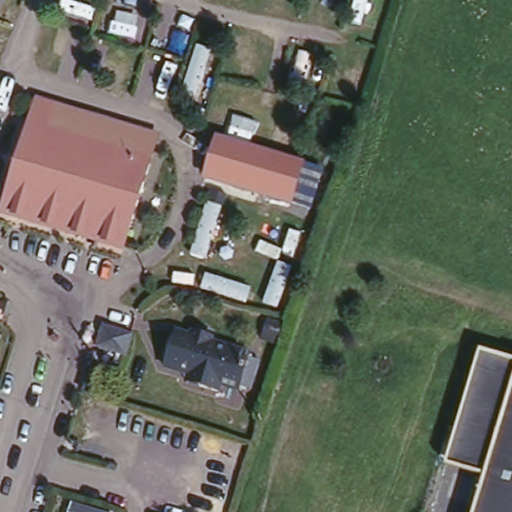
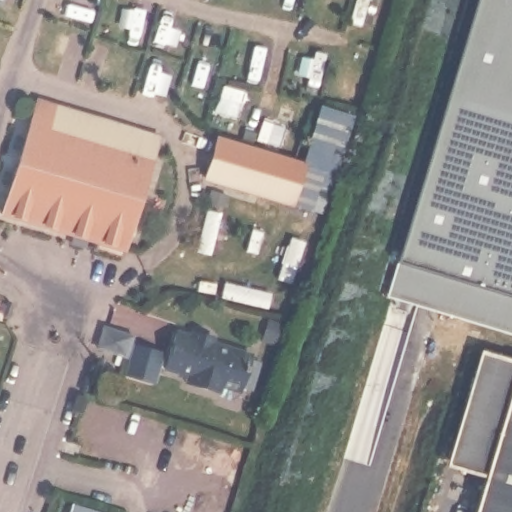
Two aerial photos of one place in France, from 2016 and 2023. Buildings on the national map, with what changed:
new [(512,0),(512,326),(388,287),(473,0),(512,0)]
unchanged [(124,253),(0,213),(0,210),(33,101),(98,121),(125,131),(162,143),(124,253)]
unchanged [(219,136),(309,165),(297,207),(206,178),(219,136)]
unchanged [(292,314),(298,293),(313,297),(306,319),(292,314)]
unchanged [(96,323),(123,332),(117,351),(90,343),(96,323)]
unchanged [(236,382),(235,385),(216,380),(214,387),(194,382),(181,378),(183,370),(158,363),(169,327),(184,331),(186,327),(206,332),(205,337),(245,349),(244,353),(253,355),(251,365),(245,385),(236,382)]
unchanged [(451,459),(486,343),(512,351),(512,512),(475,512),(488,470),(451,459)]

